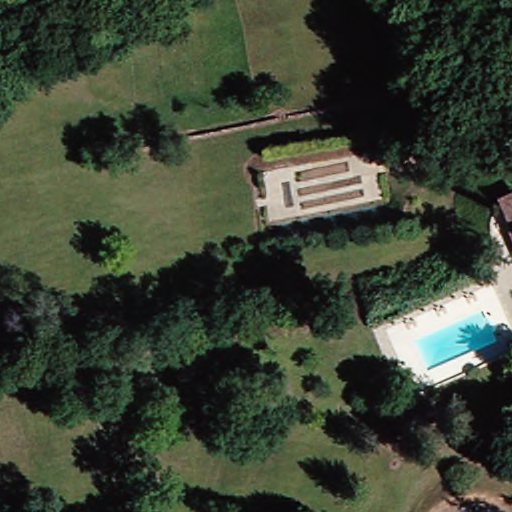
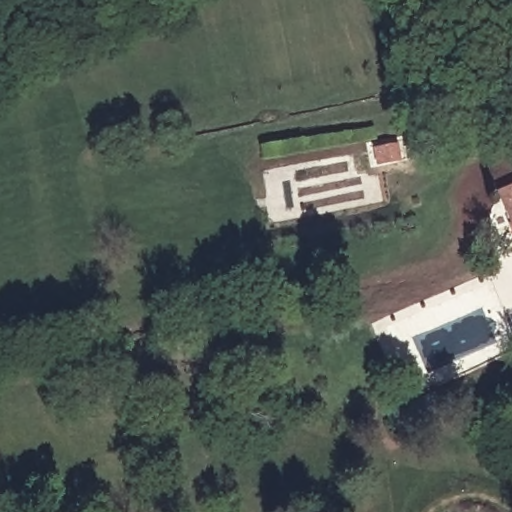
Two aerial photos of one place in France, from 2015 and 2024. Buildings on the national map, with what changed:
unchanged [(501,229),(508,225),(497,200),(512,193),(512,256),(501,229)]
unchanged [(377,427),(414,412),(420,432),(385,446),(377,427)]

